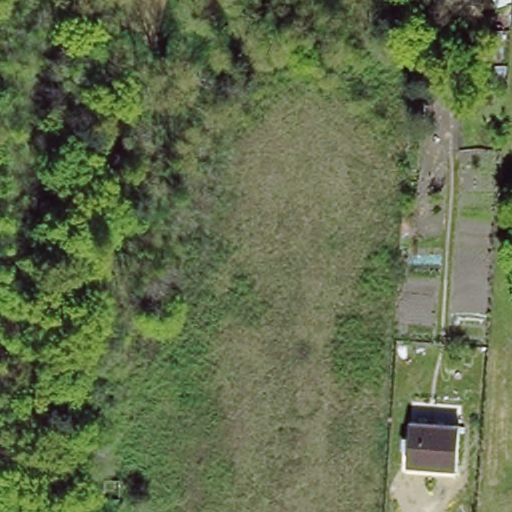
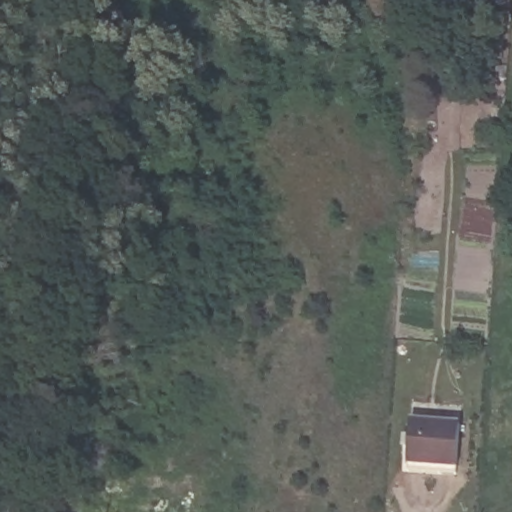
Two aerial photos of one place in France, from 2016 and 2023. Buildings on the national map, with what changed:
unchanged [(459,463),(417,462),(417,423),(460,424),(459,463)]

